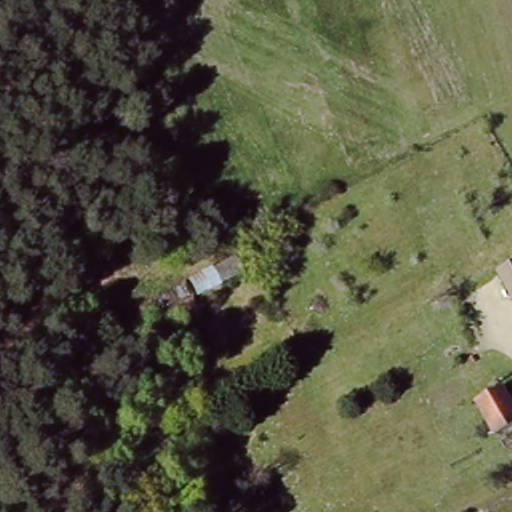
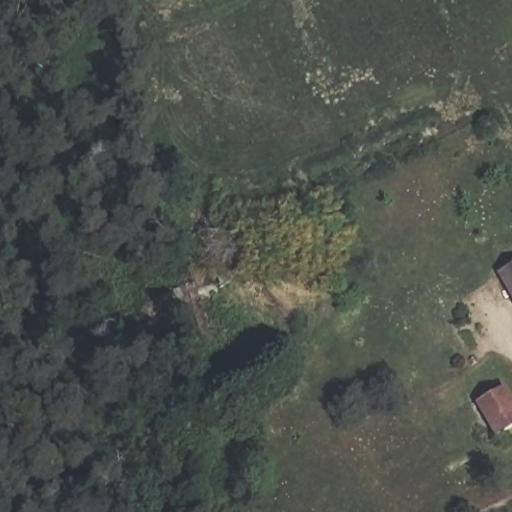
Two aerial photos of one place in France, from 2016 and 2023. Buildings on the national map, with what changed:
unchanged [(191,306),(180,285),(237,260),(246,279),(191,306)]
unchanged [(498,271),(512,262),(512,298),(498,271)]
unchanged [(512,413),(512,431),(493,442),(473,407),(501,392),(512,413)]

